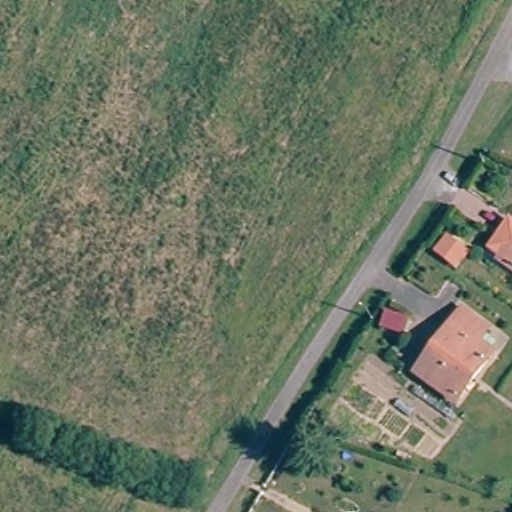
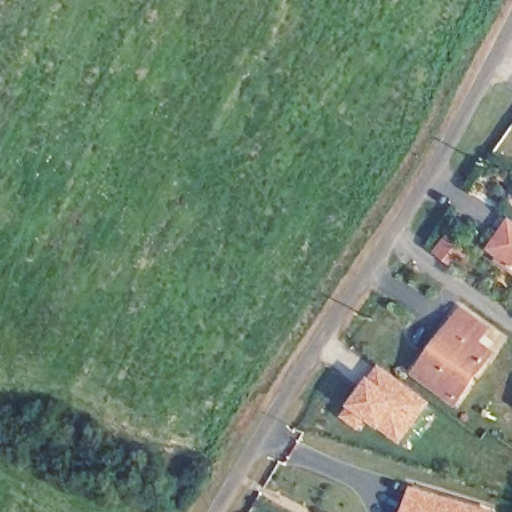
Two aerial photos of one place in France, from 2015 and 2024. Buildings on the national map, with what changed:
unchanged [(501,254),(498,252),(512,233),(512,262),(501,254)]
unchanged [(451,243),(469,257),(460,268),(442,255),(451,243)]
unchanged [(455,403),(416,372),(462,308),(487,326),(478,340),(493,350),(455,403)]
unchanged [(412,322),(407,336),(386,330),(390,315),(412,322)]
new [(382,372),(425,402),(415,415),(422,420),(403,445),(370,421),(362,431),(347,420),(382,372)]
new [(404,512),(411,485),(496,512),(404,512)]

